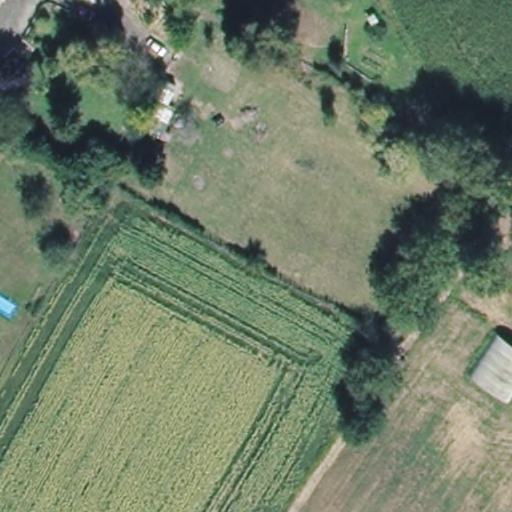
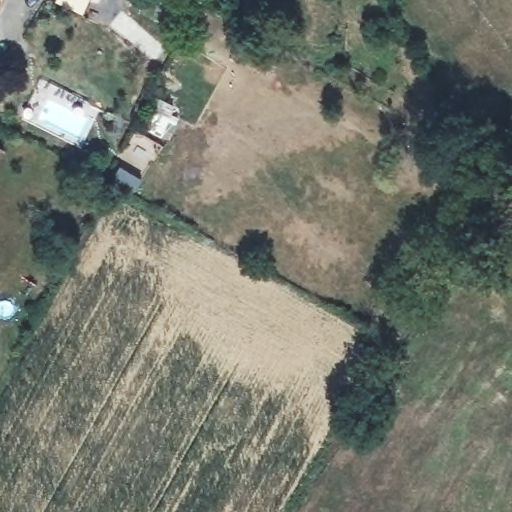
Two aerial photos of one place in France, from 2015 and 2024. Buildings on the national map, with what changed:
unchanged [(155,78),(175,85),(160,136),(141,132),(155,78)]
demolished [(2,155),(0,158),(0,153),(2,155)]
demolished [(495,333),(512,343),(512,384),(498,401),(462,380),(495,333)]

